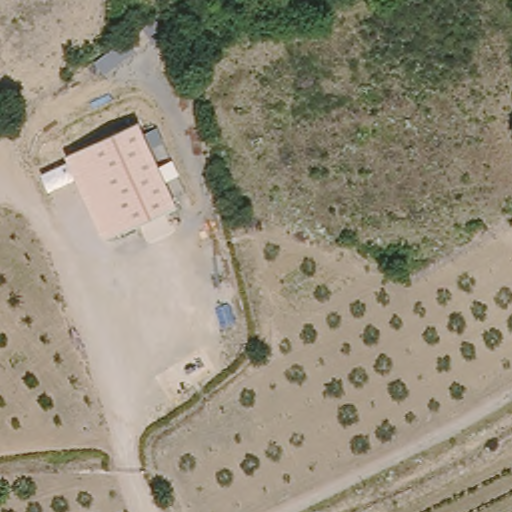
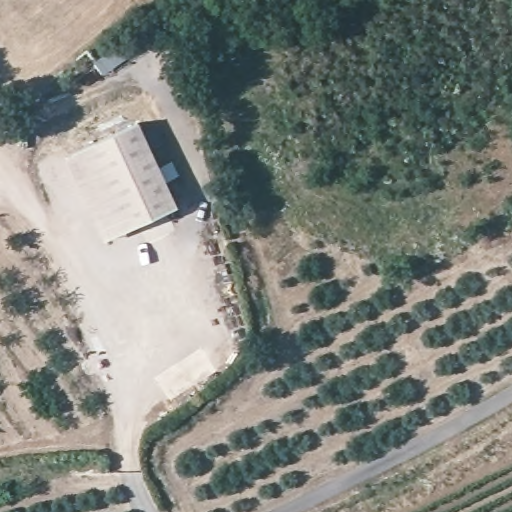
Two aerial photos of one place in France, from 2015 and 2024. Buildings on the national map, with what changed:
unchanged [(68,153),(143,123),(181,208),(104,235),(68,153)]

